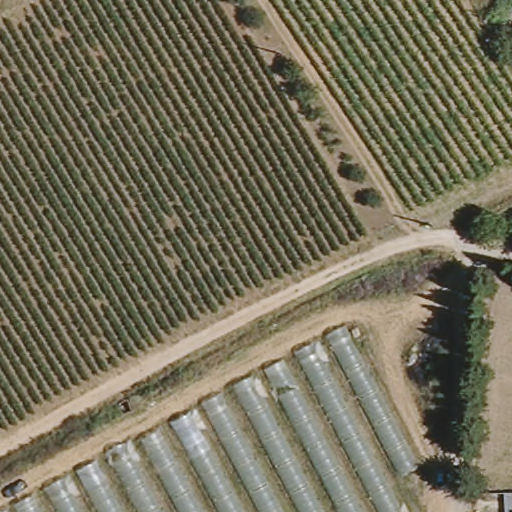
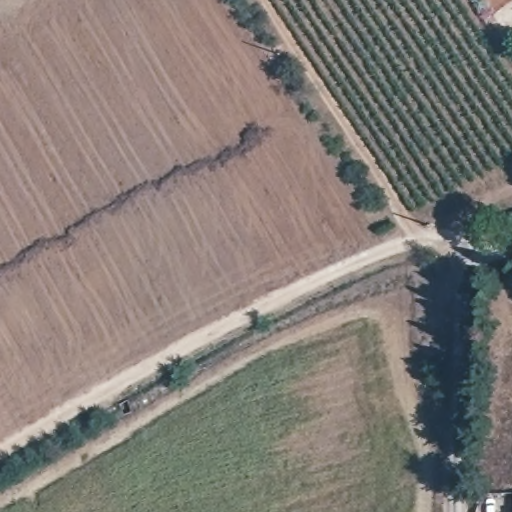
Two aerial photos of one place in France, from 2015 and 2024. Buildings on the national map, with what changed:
demolished [(485,0),(491,0),(487,3),(485,0)]
demolished [(391,405),(418,452),(411,512),(0,512),(0,510),(348,327),(391,405)]

